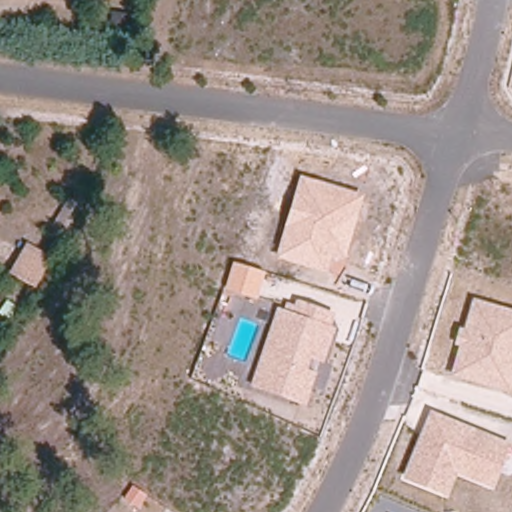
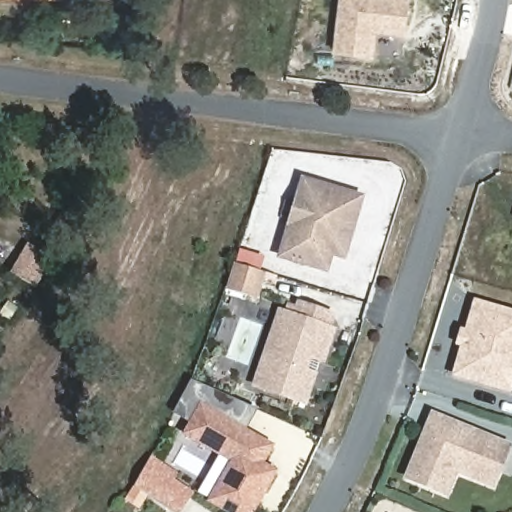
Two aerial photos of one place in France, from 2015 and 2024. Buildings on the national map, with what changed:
new [(409,0),(406,36),(377,34),(375,56),(333,54),(338,0),(409,0)]
unchanged [(345,259),(330,254),(325,273),(276,257),(300,175),(364,195),(345,259)]
unchanged [(79,209),(64,234),(51,227),(66,200),(80,208),(79,209)]
unchanged [(36,290),(12,277),(21,260),(37,269),(43,258),(52,262),(36,290)]
new [(240,268),(269,277),(262,300),(233,292),(240,268)]
unchanged [(449,375),(458,347),(452,344),(456,327),(462,328),(471,297),(512,309),(512,380),(508,393),(449,375)]
unchanged [(332,326),(338,328),(325,364),(314,360),(311,369),(319,373),(307,405),(248,386),(277,307),(283,309),(287,301),(294,304),(296,299),(336,314),(332,326)]
new [(229,464),(184,438),(201,404),(276,446),(265,463),(280,471),(256,512),(223,512),(208,503),(229,464)]
unchanged [(456,474),(446,497),(402,478),(430,411),(512,444),(512,448),(494,491),(456,474)]
new [(148,496),(141,509),(125,500),(152,456),(179,474),(176,481),(195,492),(182,512),(173,512),(148,496)]

